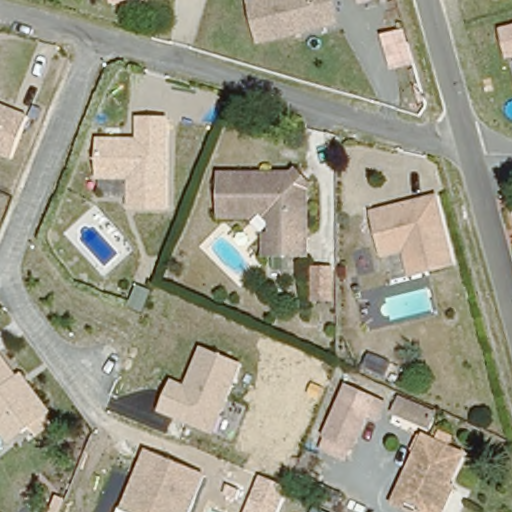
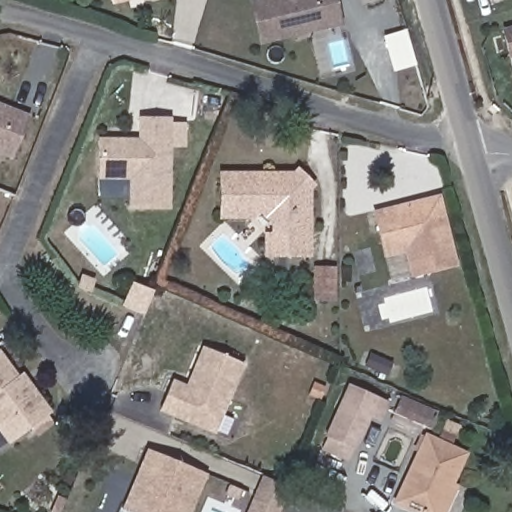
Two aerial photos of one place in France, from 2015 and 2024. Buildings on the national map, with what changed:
unchanged [(260,33),(254,2),(265,0),(335,0),(335,1),(341,25),(338,26),(325,29),(303,34),(296,35),(263,42),(260,33)]
unchanged [(358,0),(383,0),(359,7),(358,0)]
unchanged [(512,30),(512,55),(511,56),(505,32),(512,30)]
unchanged [(0,151),(0,103),(31,116),(15,157),(0,151)]
unchanged [(172,118),(168,207),(130,205),(131,176),(100,175),(101,144),(130,145),(141,145),(143,117),(172,118)]
unchanged [(308,184),(308,252),(274,252),(274,216),(258,205),(253,212),(225,212),(223,175),(291,169),(308,184)]
unchanged [(408,245),(384,251),(382,240),(374,212),(412,202),(414,207),(424,204),(423,199),(438,195),(456,260),(419,270),(414,272),(408,245)]
unchanged [(314,298),(312,268),(330,266),(332,297),(314,298)]
unchanged [(203,347),(246,365),(214,434),(159,412),(173,379),(187,386),(203,347)]
unchanged [(0,352),(18,377),(23,373),(52,412),(10,446),(0,432),(0,352)]
unchanged [(431,415),(396,400),(399,391),(434,406),(431,415)]
unchanged [(376,422),(364,417),(351,451),(327,440),(345,395),(381,408),(376,422)]
unchanged [(392,502),(421,436),(460,452),(447,486),(436,512),(416,512),(392,502)]
unchanged [(145,450),(208,476),(192,512),(129,512),(124,510),(145,450)]
unchanged [(279,512),(245,512),(259,475),(288,486),(279,512)]

